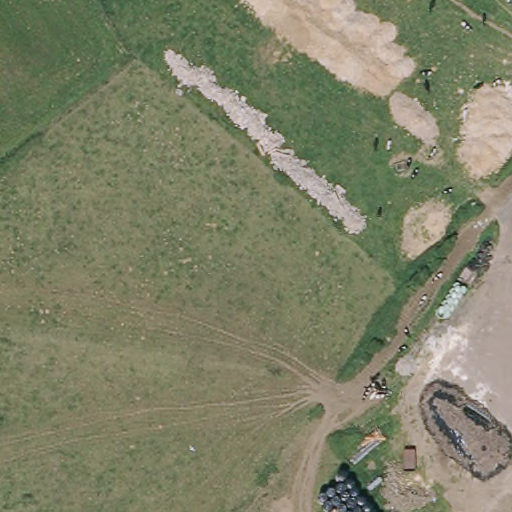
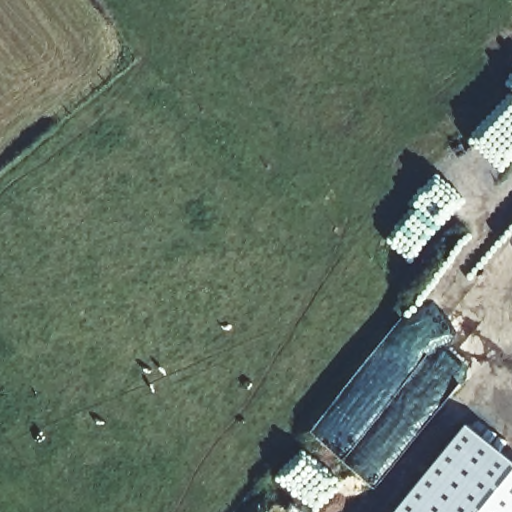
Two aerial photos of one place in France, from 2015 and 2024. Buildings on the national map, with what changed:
new [(392,512),(463,425),(512,465),(512,512),(392,512)]

